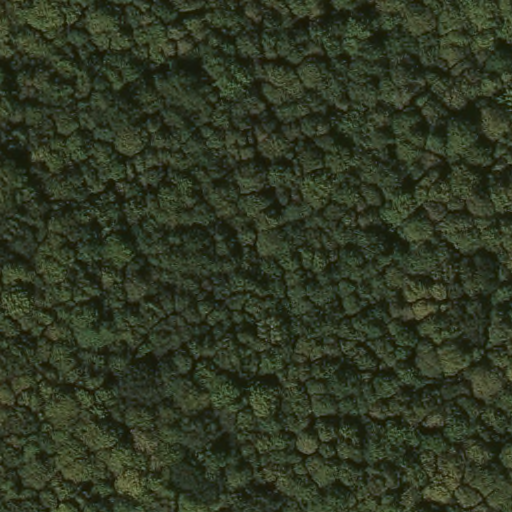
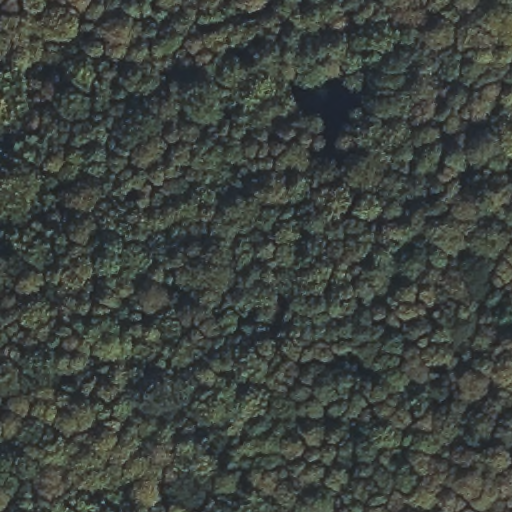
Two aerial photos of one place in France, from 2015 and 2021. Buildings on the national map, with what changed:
[]

